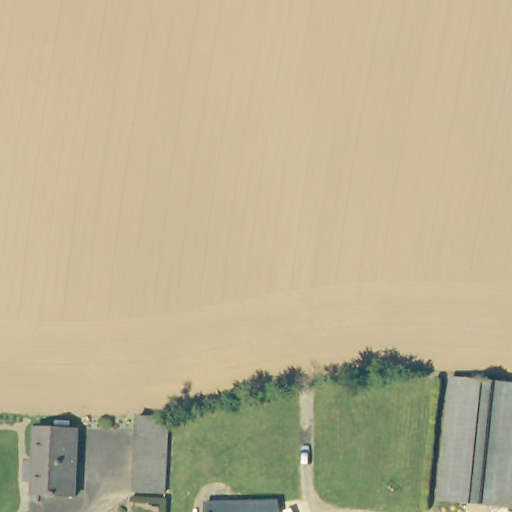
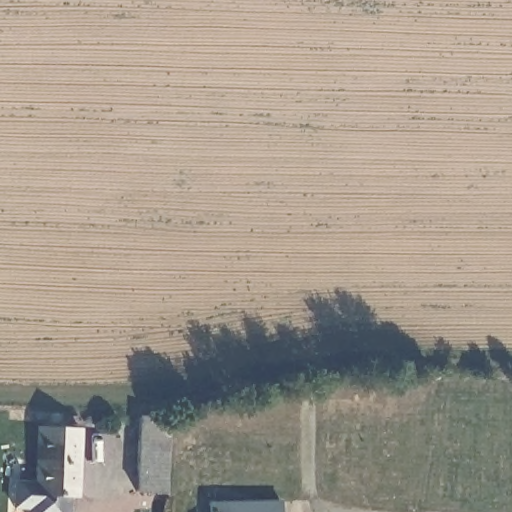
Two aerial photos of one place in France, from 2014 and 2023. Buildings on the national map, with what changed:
demolished [(461,506),(444,504),(458,378),(481,381),(461,506)]
demolished [(512,385),(512,512),(497,512),(497,510),(461,506),(481,381),(512,385)]
unchanged [(169,419),(170,419),(166,496),(135,493),(141,417),(169,419)]
unchanged [(79,427),(75,496),(35,494),(36,425),(79,427)]
unchanged [(283,504),(282,512),(209,512),(209,503),(283,504)]

